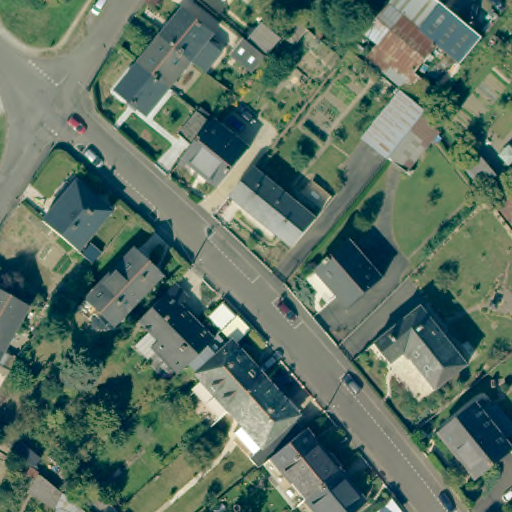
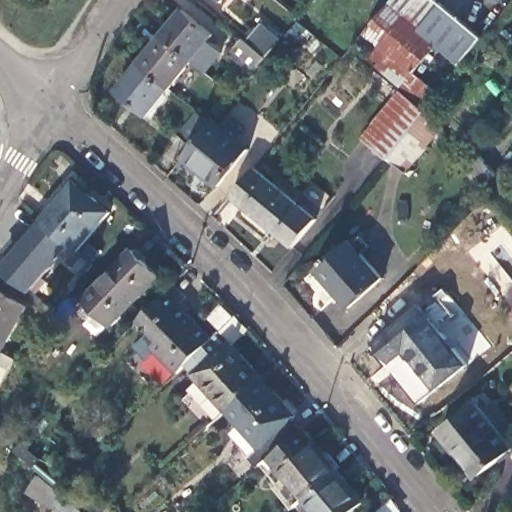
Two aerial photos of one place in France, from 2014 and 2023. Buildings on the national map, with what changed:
unchanged [(221,2),(218,0),(222,0),(221,2)]
unchanged [(415,97),(418,93),(368,54),(379,40),(364,27),(387,0),(437,0),(439,1),(446,8),(458,20),(482,40),(441,89),(427,106),(415,97)]
unchanged [(183,5),(212,29),(191,56),(161,32),(183,5)]
unchanged [(253,24),(254,26),(260,19),(278,34),(264,51),(244,34),(253,24)]
unchanged [(191,56),(168,84),(139,59),(161,32),(191,56)]
unchanged [(230,50),(243,35),(263,53),(251,67),(230,50)]
unchanged [(168,84),(146,110),(118,86),(139,59),(168,84)]
unchanged [(411,162),(415,166),(410,172),(388,154),(364,133),(402,86),(415,97),(427,106),(412,125),(429,140),(411,162)]
unchanged [(182,135),(202,112),(216,124),(218,122),(253,151),(224,187),(188,158),(197,148),(182,135)]
unchanged [(256,170),(308,211),(319,219),(298,246),(234,198),(256,170)]
unchanged [(78,174),(113,204),(78,243),(45,213),(78,174)]
new [(74,239),(33,293),(3,269),(50,218),(74,239)]
unchanged [(380,279),(346,306),(315,269),(349,240),(380,279)]
unchanged [(96,307),(87,316),(76,305),(134,247),(161,273),(113,322),(96,307)]
unchanged [(177,284),(191,297),(186,303),(195,312),(193,314),(217,337),(194,360),(182,371),(162,351),(154,360),(139,346),(152,331),(141,320),(177,284)]
unchanged [(28,303),(3,348),(0,346),(0,288),(28,303)]
unchanged [(469,364),(438,390),(408,352),(392,364),(377,345),(424,307),(469,364)]
unchanged [(217,337),(223,332),(232,342),(236,337),(270,375),(236,406),(217,422),(192,394),(210,378),(194,360),(217,337)]
unchanged [(3,348),(0,353),(0,346),(3,348)]
unchanged [(270,375),(301,411),(298,415),(308,426),(276,453),(263,464),(240,437),(243,434),(239,429),(249,421),(236,406),(270,375)]
unchanged [(439,434),(482,400),(486,406),(481,410),(512,449),(475,479),(439,434)]
unchanged [(310,495),(276,453),(308,426),(310,424),(345,467),(310,495)]
unchanged [(350,512),(323,512),(310,495),(345,467),(368,497),(350,512)]
unchanged [(48,510),(22,491),(34,474),(58,492),(84,512),(49,512),(50,511),(48,510)]
unchanged [(99,490),(106,498),(105,499),(112,507),(116,512),(95,512),(85,502),(99,490)]

